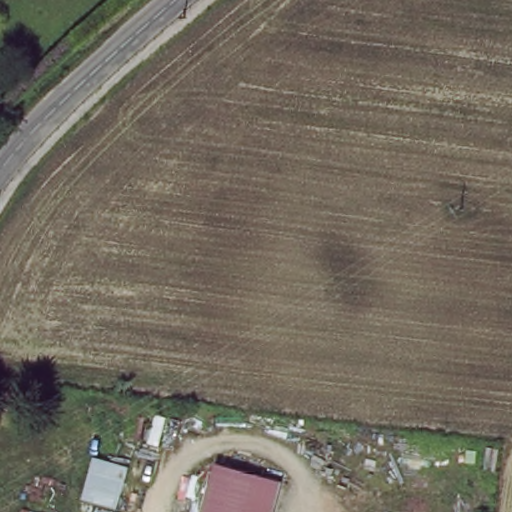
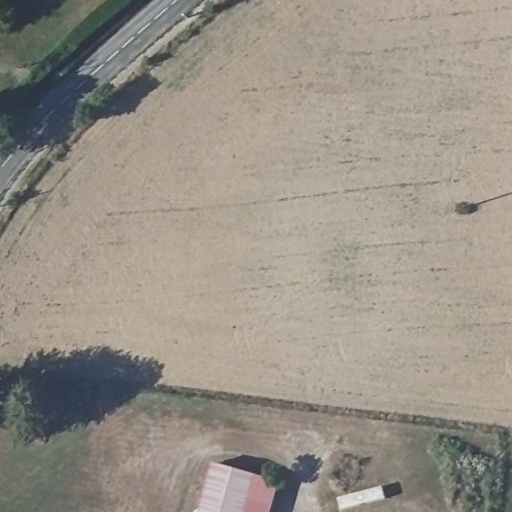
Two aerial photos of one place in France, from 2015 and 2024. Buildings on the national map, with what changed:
unchanged [(512,446),(512,454),(512,458),(497,457),(499,445),(512,446)]
demolished [(118,510),(82,501),(92,458),(127,469),(118,510)]
unchanged [(264,481),(255,512),(211,512),(224,470),(264,481)]
demolished [(21,510),(27,512),(20,512),(21,510)]

